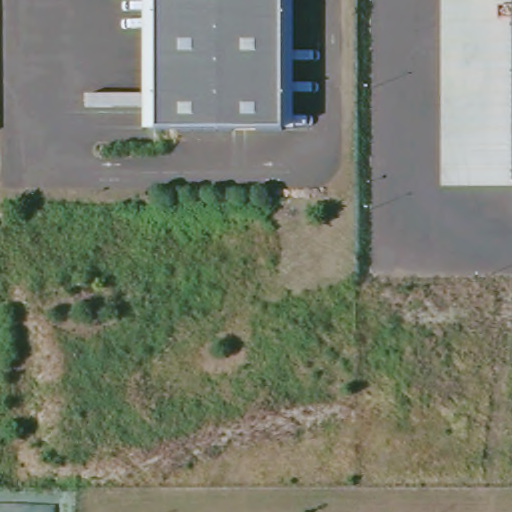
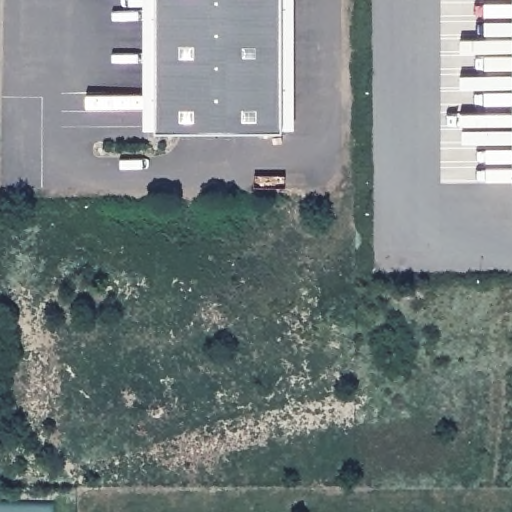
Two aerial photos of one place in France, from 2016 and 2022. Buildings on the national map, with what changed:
unchanged [(150,0),(278,0),(278,130),(150,130),(150,0)]

